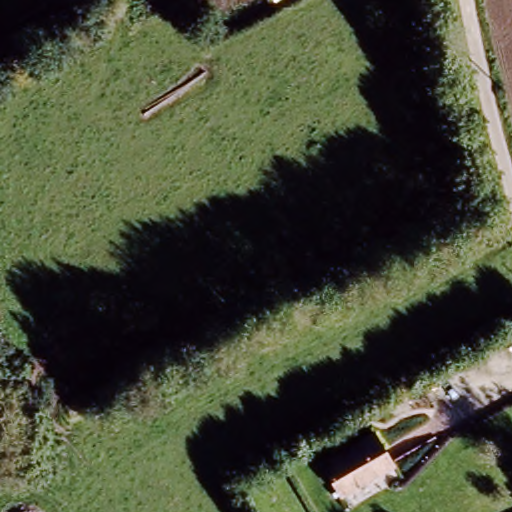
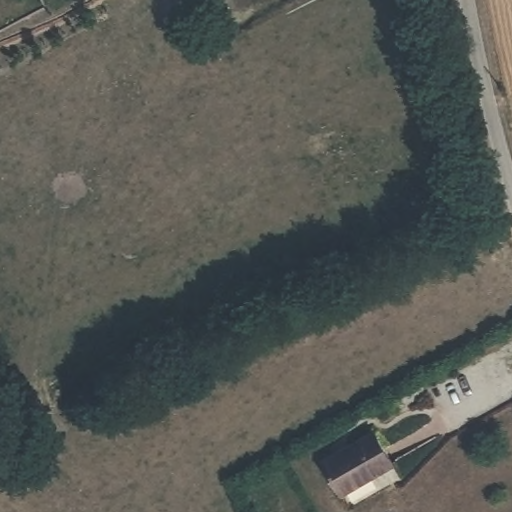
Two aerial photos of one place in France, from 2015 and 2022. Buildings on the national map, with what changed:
unchanged [(369,424),(399,466),(345,500),(315,456),(369,424)]

